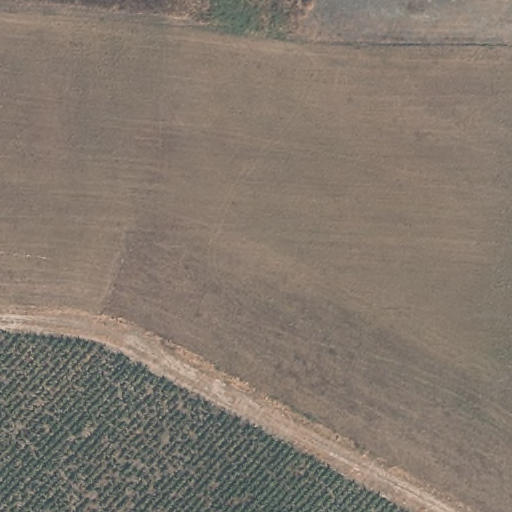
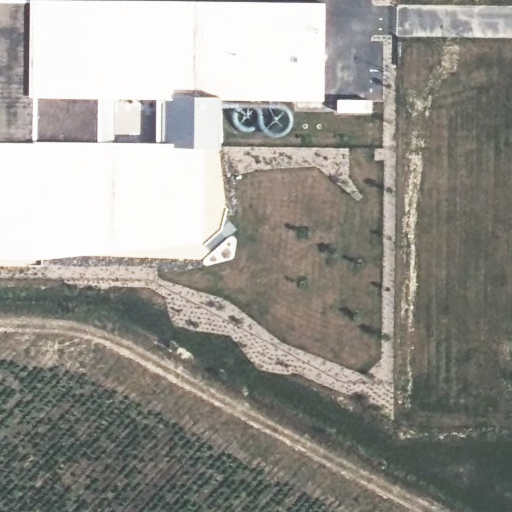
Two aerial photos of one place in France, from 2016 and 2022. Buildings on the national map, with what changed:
new [(329,99),(218,99),(218,149),(192,154),(188,240),(36,244),(36,255),(0,255),(0,0),(11,0),(331,5),(329,99)]

